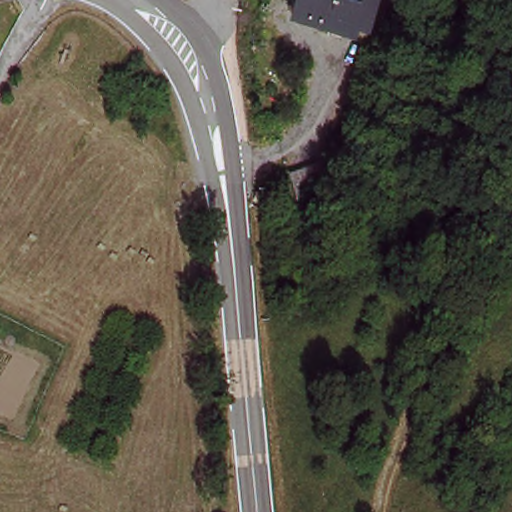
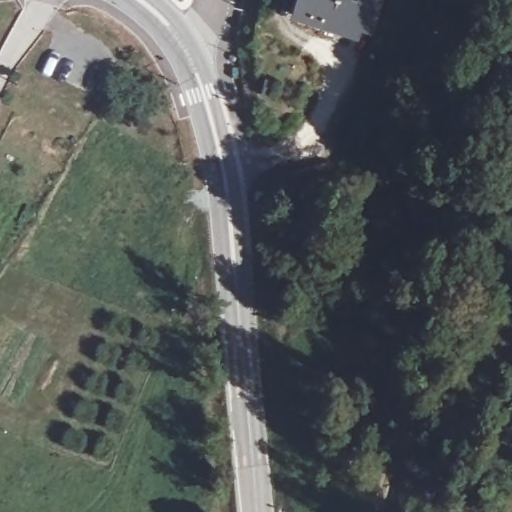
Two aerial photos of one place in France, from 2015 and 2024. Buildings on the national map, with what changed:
unchanged [(365,37),(288,10),(292,0),(376,0),(377,0),(365,37)]
unchanged [(275,165),(330,146),(338,176),(284,195),(275,165)]

